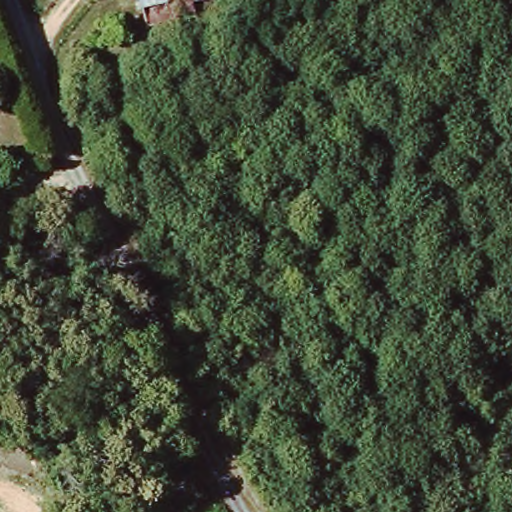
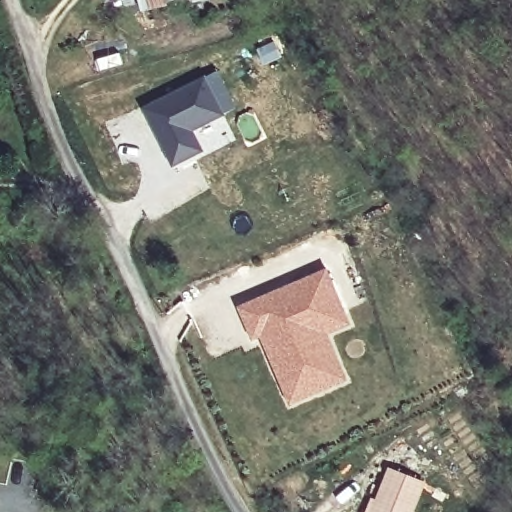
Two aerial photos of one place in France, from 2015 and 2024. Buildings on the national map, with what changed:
unchanged [(206,2),(158,11),(156,0),(205,0),(206,2)]
new [(204,80),(221,116),(193,132),(203,152),(174,167),(145,110),(204,80)]
new [(328,273),(351,327),(329,337),(348,384),(291,408),(266,347),(271,345),(269,337),(254,344),(240,311),(328,273)]
unchanged [(45,463),(41,482),(16,475),(20,454),(45,463)]
new [(424,485),(413,512),(410,512),(379,500),(391,472),(424,485)]
new [(410,512),(375,512),(379,500),(410,512)]

